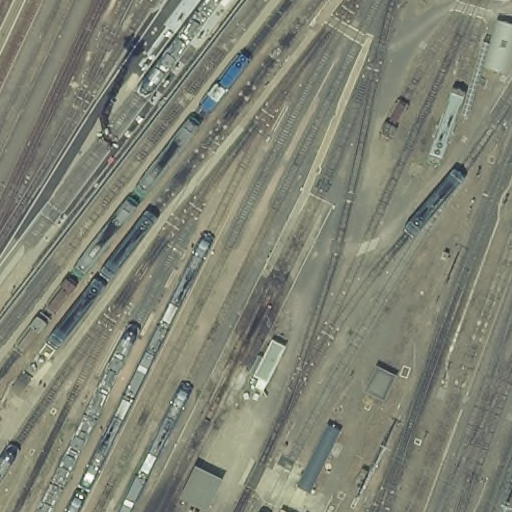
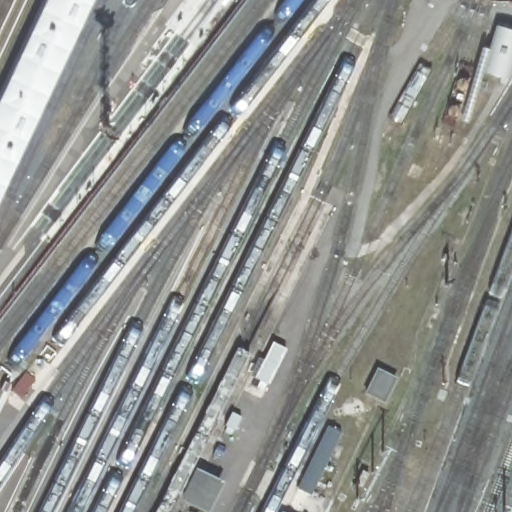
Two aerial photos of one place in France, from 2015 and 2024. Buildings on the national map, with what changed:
new [(93,0),(67,56),(0,196),(0,92),(43,0),(93,0)]
unchanged [(484,61),(494,24),(512,29),(512,67),(484,61)]
unchanged [(396,375),(385,401),(363,390),(375,367),(396,375)]
unchanged [(221,480),(208,512),(178,498),(196,467),(221,480)]
unchanged [(290,494),(312,503),(308,512),(280,512),(290,494)]

